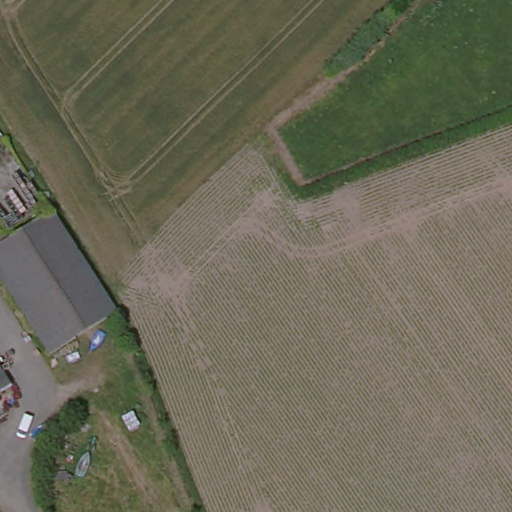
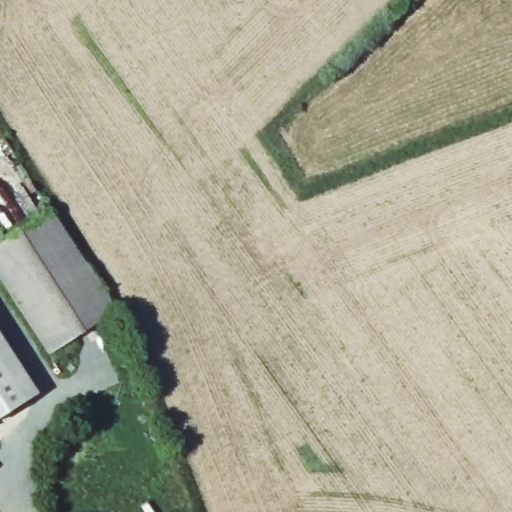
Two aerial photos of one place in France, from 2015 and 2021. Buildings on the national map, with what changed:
unchanged [(110,316),(40,364),(0,305),(0,244),(42,215),(67,253),(110,316)]
new [(0,418),(0,331),(40,393),(0,418)]
demolished [(12,404),(0,414),(0,387),(12,404)]

